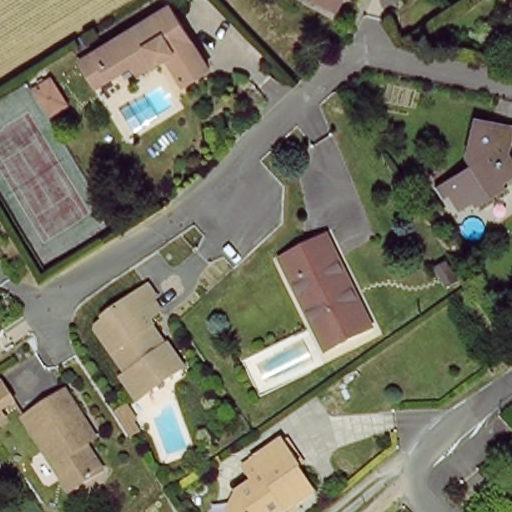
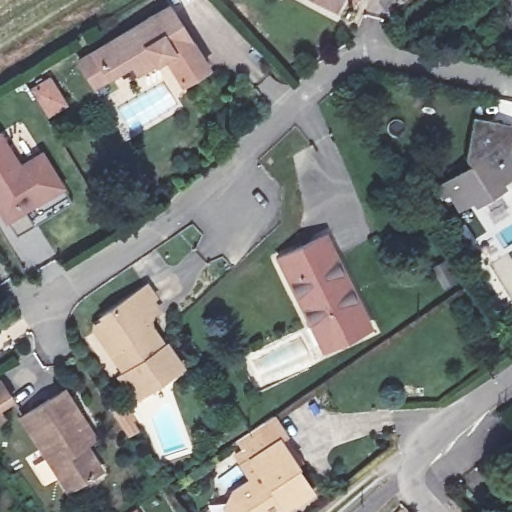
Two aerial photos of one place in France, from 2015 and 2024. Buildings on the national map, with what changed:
unchanged [(334,10),(317,0),(339,0),(334,10)]
unchanged [(202,71),(178,85),(163,57),(134,73),(128,63),(91,84),(77,60),(166,8),(202,71)]
new [(50,74),(69,104),(47,117),(29,86),(50,74)]
unchanged [(506,156),(512,167),(512,178),(499,186),(503,196),(471,215),(466,208),(451,216),(444,203),(449,200),(441,185),(470,166),(461,155),(472,121),(512,136),(512,141),(506,156)]
new [(1,130),(21,161),(43,149),(66,189),(6,225),(0,216),(0,131),(1,130)]
unchanged [(305,318),(277,256),(323,235),(367,329),(333,345),(320,350),(305,318)]
unchanged [(138,400),(123,377),(130,370),(102,331),(101,326),(101,320),(101,312),(152,277),(160,291),(151,297),(160,310),(150,317),(152,321),(167,343),(185,368),(138,400)]
unchanged [(11,401),(0,409),(0,386),(11,401)]
unchanged [(67,494),(14,418),(58,388),(86,428),(93,438),(79,449),(95,473),(67,494)]
unchanged [(0,421),(0,415),(3,419),(0,421)]
unchanged [(251,472),(245,461),(283,435),(301,462),(294,468),(310,490),(277,512),(223,512),(216,502),(232,490),(251,472)]

